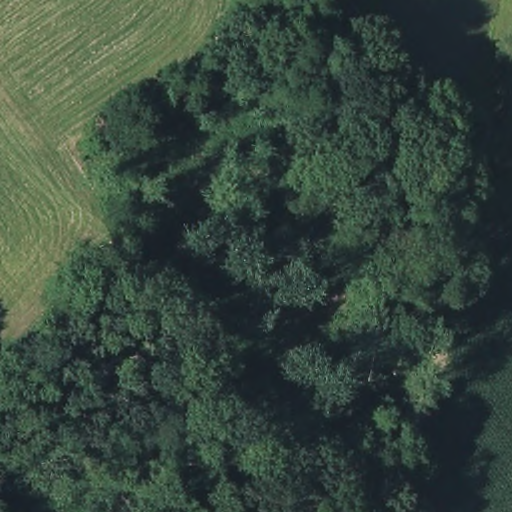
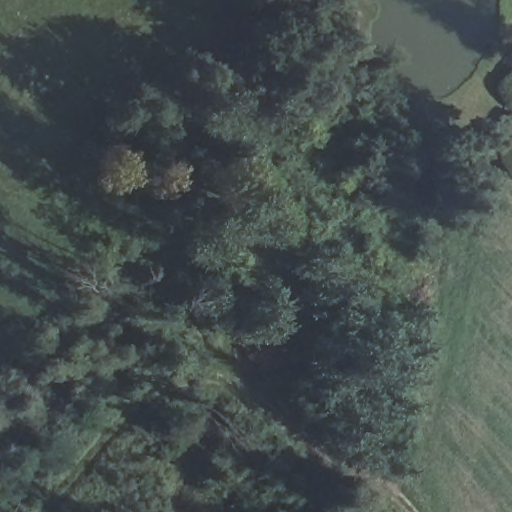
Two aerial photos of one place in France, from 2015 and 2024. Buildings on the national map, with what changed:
unchanged [(320,18),(337,4),(351,21),(337,32),(334,35),(320,18)]

